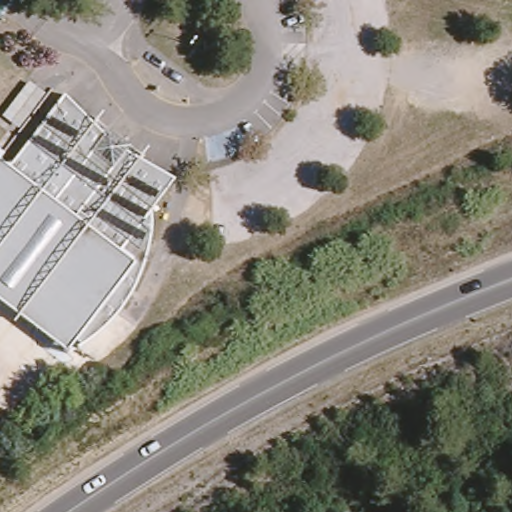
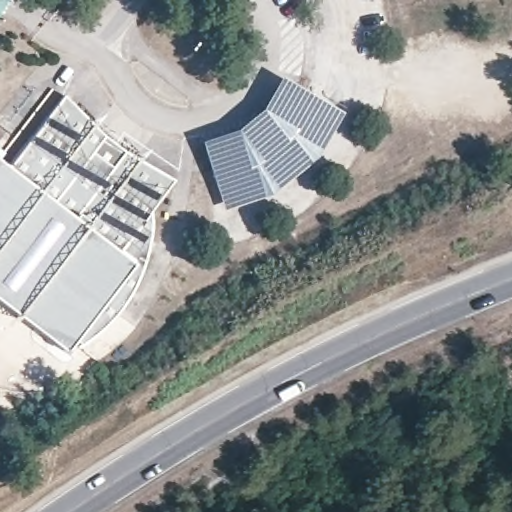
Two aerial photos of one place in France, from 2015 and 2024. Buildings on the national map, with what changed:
new [(234,128),(253,113),(261,105),(280,75),(345,112),(320,154),(300,171),(268,196),(223,210),(198,141),(234,128)]
unchanged [(155,166),(166,172),(174,176),(151,206),(151,220),(151,230),(150,238),(148,246),(147,255),(145,265),(141,273),(138,281),(134,291),(130,299),(125,306),(121,311),(116,316),(110,321),(105,326),(101,330),(93,336),(86,342),(80,346),(75,342),(68,351),(0,301),(0,159),(6,163),(61,92),(68,100),(77,109),(83,113),(90,120),(96,125),(105,132),(106,130),(125,143),(123,147),(130,152),(143,160),(155,166)]

